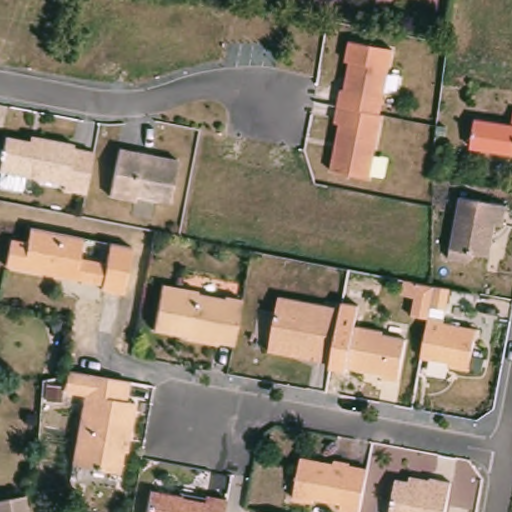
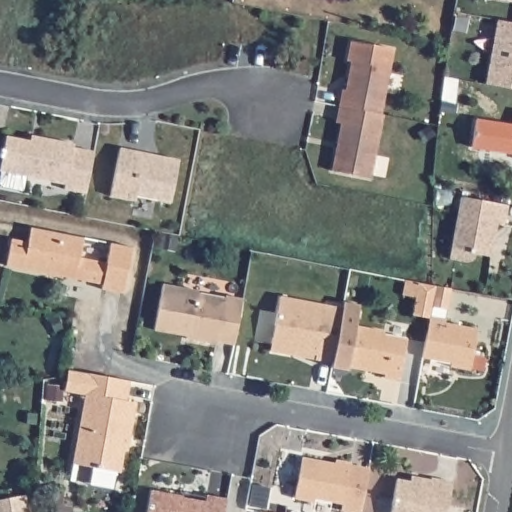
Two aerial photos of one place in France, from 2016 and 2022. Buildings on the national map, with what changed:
new [(512,1),(504,0),(512,0),(512,1)]
new [(512,88),(486,84),(497,21),(512,24),(512,88)]
unchanged [(341,89),(345,90),(350,61),(346,61),(349,41),(392,49),(380,114),(337,106),(341,89)]
unchanged [(370,179),(331,172),(340,124),(335,124),(337,106),(380,114),(381,114),(382,115),(370,179)]
unchanged [(479,120),(512,125),(512,153),(476,148),(479,120)]
unchanged [(0,172),(0,162),(1,160),(0,159),(0,150),(2,150),(5,136),(29,140),(38,142),(39,139),(72,145),(72,149),(92,153),(87,181),(86,187),(85,195),(62,190),(64,185),(0,172)]
unchanged [(136,196),(135,201),(110,197),(120,149),(178,160),(170,203),(136,196)]
unchanged [(475,254),(474,255),(473,256),(473,258),(472,259),(471,260),(470,260),(469,261),(467,262),(466,262),(465,262),(464,262),(463,262),(448,260),(460,196),(506,205),(502,225),(495,224),(489,256),(475,254)]
unchanged [(122,295),(101,290),(102,285),(5,266),(10,240),(27,243),(30,228),(82,239),(78,258),(105,264),(109,244),(131,248),(122,295)]
unchanged [(233,345),(217,343),(217,345),(185,340),(185,337),(153,331),(161,285),(197,292),(197,295),(224,300),(224,297),(242,300),(233,345)]
unchanged [(435,286),(450,290),(446,310),(431,307),(435,286)]
unchanged [(269,352),(279,297),(342,309),(331,363),(314,360),(292,356),(269,352)]
unchanged [(469,370),(450,367),(450,363),(421,358),(423,347),(429,317),(443,320),(443,323),(477,330),(469,370)]
unchanged [(353,326),(383,332),(382,335),(406,340),(398,381),(383,378),(383,375),(346,368),(353,326)]
unchanged [(482,370),(471,369),(473,357),(483,359),(482,370)]
unchanged [(124,447),(120,472),(72,464),(86,395),(65,391),(66,380),(67,370),(112,378),(130,381),(126,401),(136,403),(132,422),(127,447),(124,447)]
unchanged [(343,512),(341,511),(342,505),(313,500),(312,503),(293,500),(301,458),(334,465),(335,461),(350,463),(349,466),(367,470),(360,512),(343,512)]
unchanged [(389,512),(395,480),(428,486),(430,478),(451,482),(445,512),(389,512)]
unchanged [(204,500),(205,493),(226,497),(223,512),(145,512),(150,490),(204,500)]
unchanged [(0,512),(0,500),(25,495),(28,512),(0,512)]

